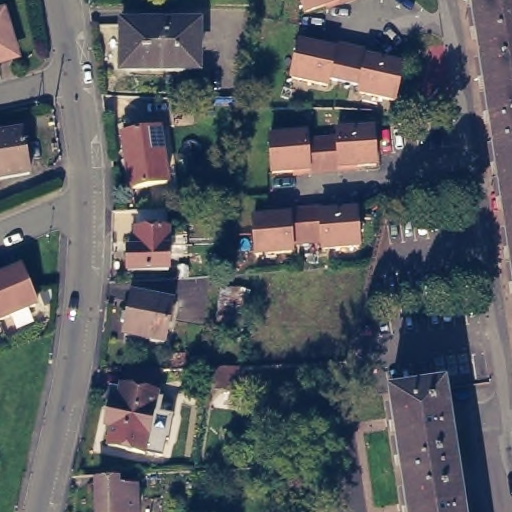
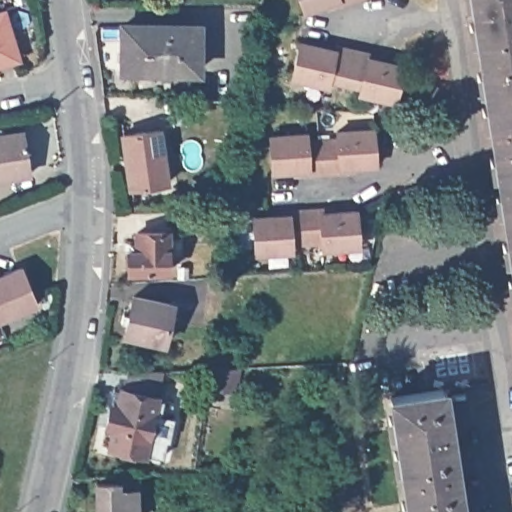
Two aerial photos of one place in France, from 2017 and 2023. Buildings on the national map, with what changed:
unchanged [(12,0),(29,54),(0,66),(0,3),(12,0)]
unchanged [(307,12),(302,0),(352,0),(342,4),(330,8),(328,4),(307,12)]
unchanged [(489,109),(475,22),(472,0),(512,0),(512,266),(501,194),(489,109)]
unchanged [(204,22),(204,67),(127,66),(129,21),(204,22)]
unchanged [(360,86),(329,79),(327,86),(291,79),(299,43),(324,49),(325,44),(337,48),(368,54),(380,57),(380,61),(395,64),(402,66),(395,102),(392,101),(358,94),(360,86)]
unchanged [(160,125),(167,179),(130,184),(122,131),(160,125)]
unchanged [(32,127),(40,169),(1,177),(0,177),(0,132),(32,127)]
unchanged [(295,172),(272,173),(269,136),(306,134),(307,141),(337,139),(336,132),(372,129),(373,129),(375,166),(352,168),(352,172),(340,173),(308,174),(295,175),(295,172)]
unchanged [(332,209),(333,213),(356,210),(359,248),(322,250),(321,243),(292,244),(292,252),(255,254),(252,218),(275,217),(275,213),(288,212),(320,209),(332,209)]
unchanged [(172,227),(174,268),(134,268),(132,247),(142,247),(142,228),(172,227)]
unchanged [(13,269),(17,269),(27,294),(32,305),(0,318),(0,275),(13,269)]
unchanged [(249,321),(216,319),(219,287),(252,289),(249,321)]
unchanged [(173,305),(165,344),(125,337),(133,297),(173,305)]
unchanged [(158,397),(150,437),(106,427),(110,405),(117,408),(121,389),(125,390),(129,370),(163,373),(158,397)]
unchanged [(450,419),(464,512),(409,512),(390,392),(445,384),(450,419)]
unchanged [(119,486),(137,485),(138,512),(97,512),(97,479),(118,479),(119,486)]

